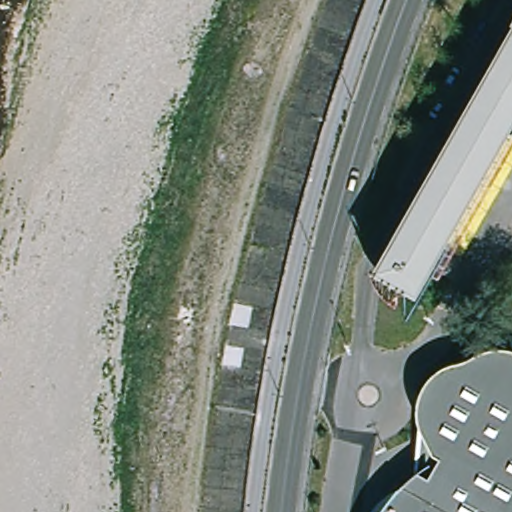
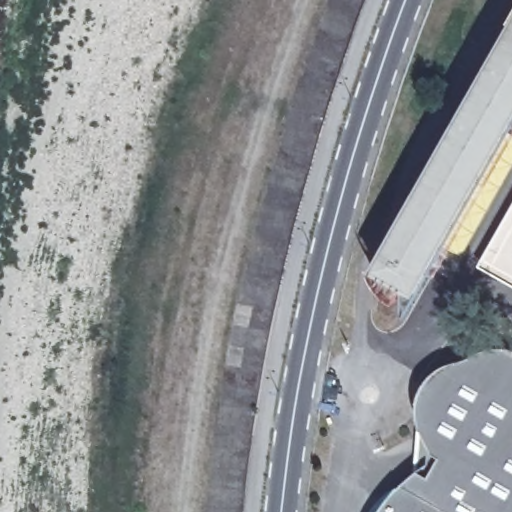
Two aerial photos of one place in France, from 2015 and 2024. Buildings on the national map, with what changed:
unchanged [(376,265),(512,26),(512,122),(418,287),(376,265)]
new [(512,208),(512,284),(480,265),(512,208)]
unchanged [(386,502),(398,487),(402,484),(411,476),(418,470),(429,476),(429,477),(440,458),(439,457),(434,454),(422,432),(418,419),(417,412),(418,404),(419,396),(425,384),(429,378),(434,374),(440,368),(446,365),(452,363),(458,362),(463,360),(469,358),(474,355),(481,351),(486,350),(491,348),(498,348),(505,348),(512,349),(512,512),(379,512),(386,502)]

